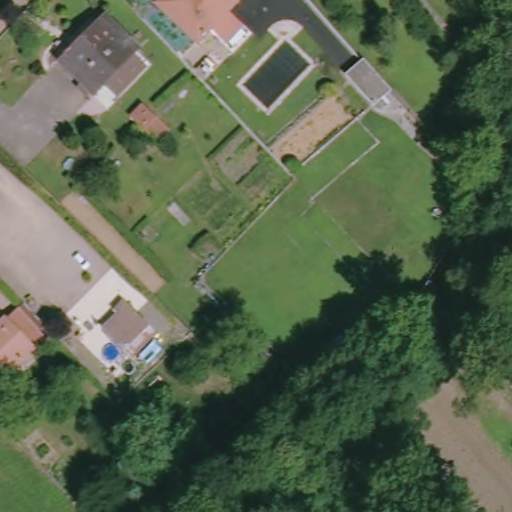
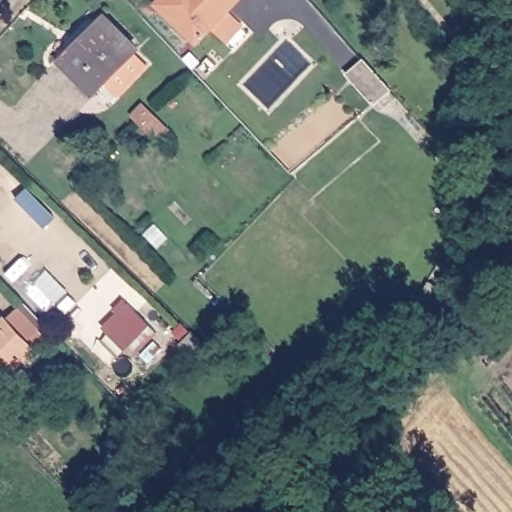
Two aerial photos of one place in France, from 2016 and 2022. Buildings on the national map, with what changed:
unchanged [(196,42),(167,16),(152,2),(155,0),(235,0),(196,42)]
unchanged [(132,45),(91,88),(62,60),(104,18),(132,45)]
unchanged [(342,73),(359,58),(385,88),(369,102),(342,73)]
unchanged [(37,331),(47,342),(33,358),(31,353),(5,377),(0,372),(0,316),(2,319),(16,301),(43,324),(37,331)]
unchanged [(132,346),(137,351),(131,358),(111,340),(103,332),(127,305),(135,312),(150,325),(132,346)]

